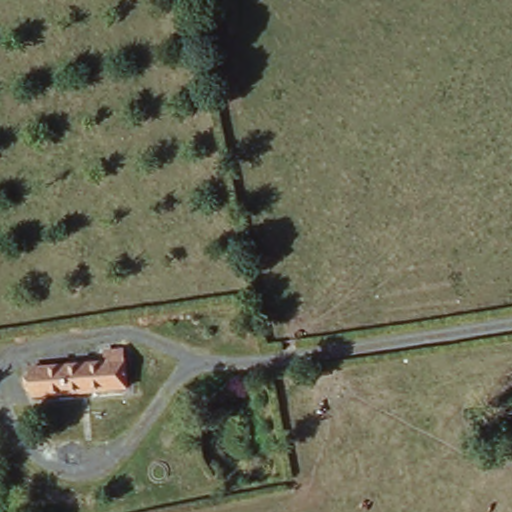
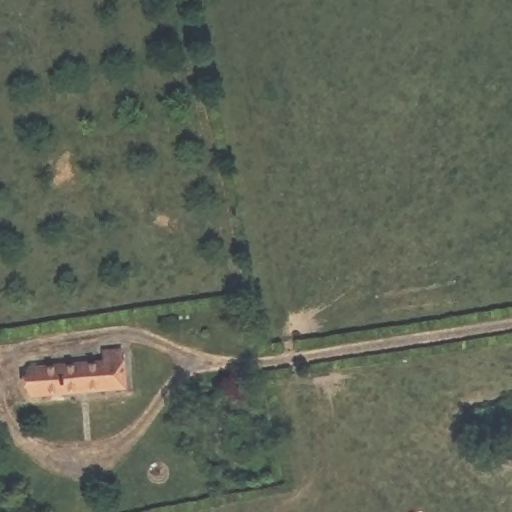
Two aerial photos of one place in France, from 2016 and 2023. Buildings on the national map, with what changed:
unchanged [(105,365),(105,354),(124,354),(127,394),(30,402),(30,370),(105,365)]

